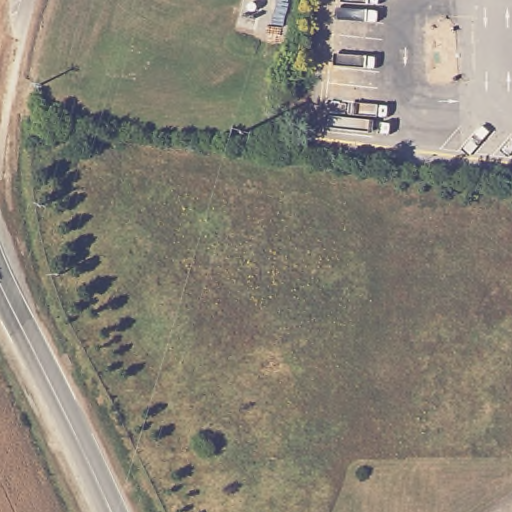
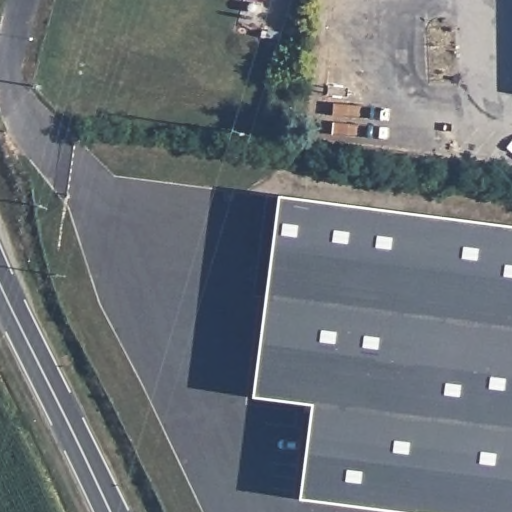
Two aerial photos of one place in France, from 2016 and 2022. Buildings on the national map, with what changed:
new [(268,297),(256,297),(269,195),(281,196),(512,226),(512,512),(400,512),(302,500),(315,404),(255,398),(268,297)]

